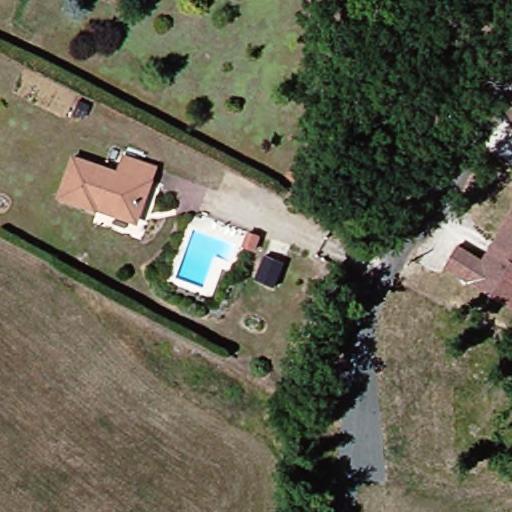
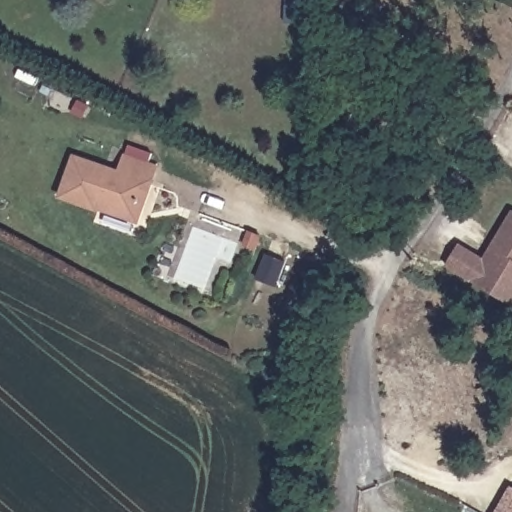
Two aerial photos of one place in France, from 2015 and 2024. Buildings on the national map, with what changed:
unchanged [(56,196),(73,157),(113,176),(122,159),(152,174),(142,195),(137,192),(124,221),(82,201),(81,205),(77,207),(56,196)]
unchanged [(500,300),(444,270),(456,249),(482,262),(509,212),(512,214),(512,307),(500,300)]
unchanged [(267,244),(262,258),(251,255),(256,240),(267,244)]
unchanged [(292,283),(284,295),(267,284),(276,272),(292,283)]
new [(495,512),(510,485),(512,487),(512,512),(495,512)]

